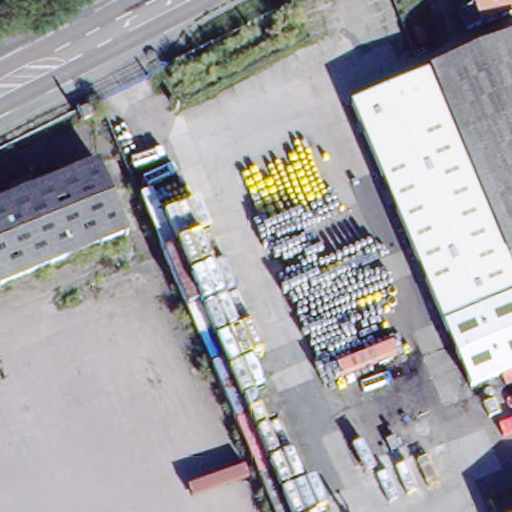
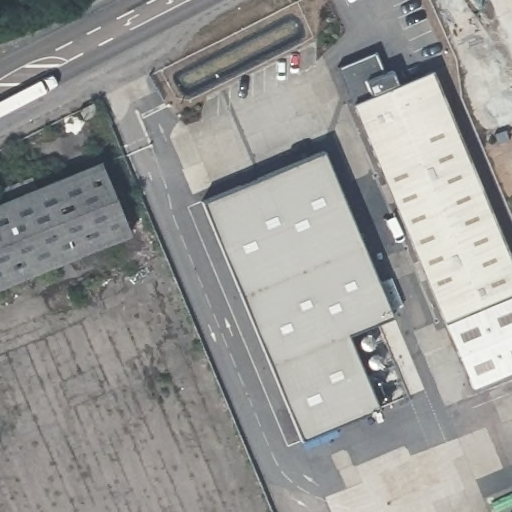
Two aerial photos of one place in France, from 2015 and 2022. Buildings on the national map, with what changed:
demolished [(470,29),(462,11),(477,5),(475,0),(512,0),(512,12),(470,29)]
demolished [(435,70),(512,37),(512,255),(435,70)]
new [(357,107),(339,70),(376,55),(386,76),(391,72),(397,90),(357,107)]
unchanged [(512,284),(512,296),(446,323),(357,107),(429,77),(512,284)]
unchanged [(104,117),(89,125),(84,114),(100,106),(104,117)]
new [(299,438),(202,204),(323,153),(391,318),(345,336),(376,410),(299,438)]
unchanged [(129,231),(0,284),(0,204),(101,163),(129,231)]
unchanged [(512,296),(512,370),(472,387),(446,323),(512,296)]

